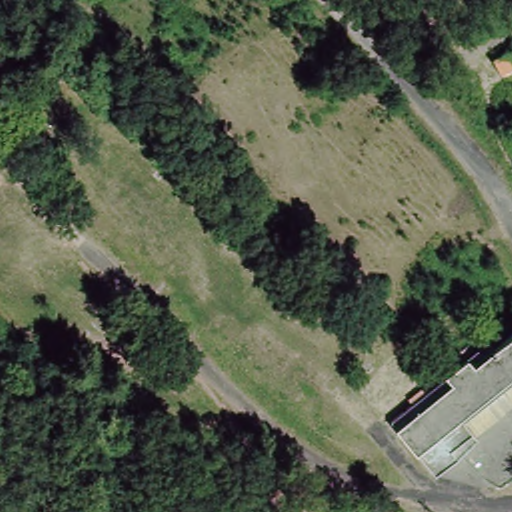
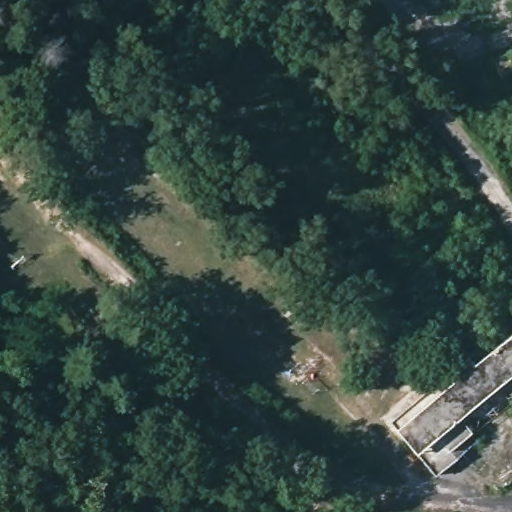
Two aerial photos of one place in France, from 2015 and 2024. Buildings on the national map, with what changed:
unchanged [(499,383),(455,421),(450,428),(467,448),(455,460),(432,480),(388,431),(462,364),(468,370),(481,360),(507,336),(512,332),(512,396),(507,391),(499,383)]

